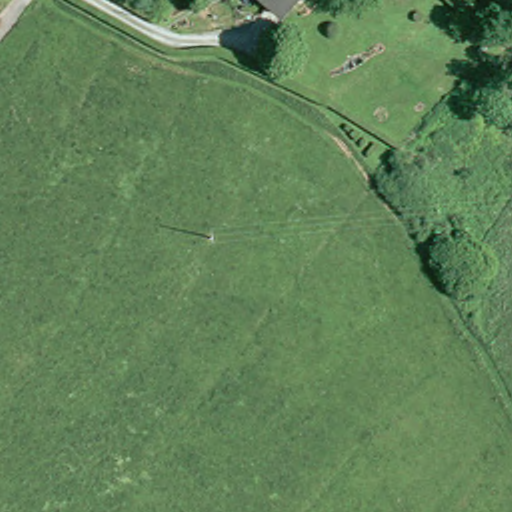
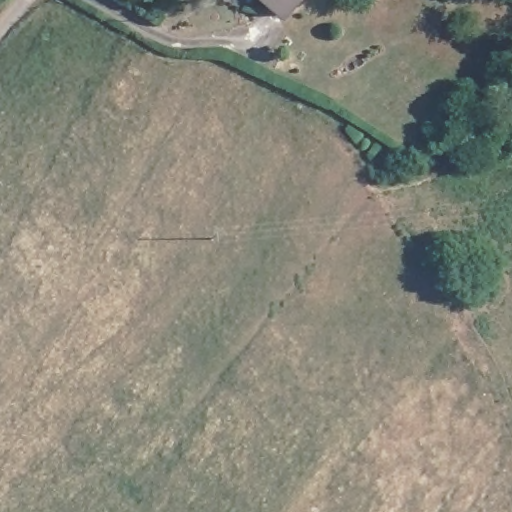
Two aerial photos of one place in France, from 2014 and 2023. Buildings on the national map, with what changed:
unchanged [(263,0),(297,0),(282,17),(263,0)]

